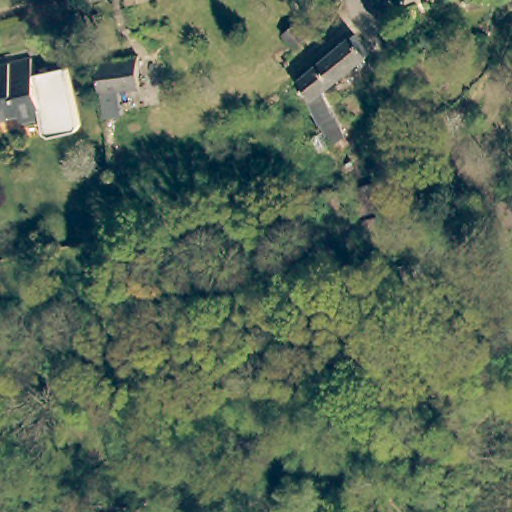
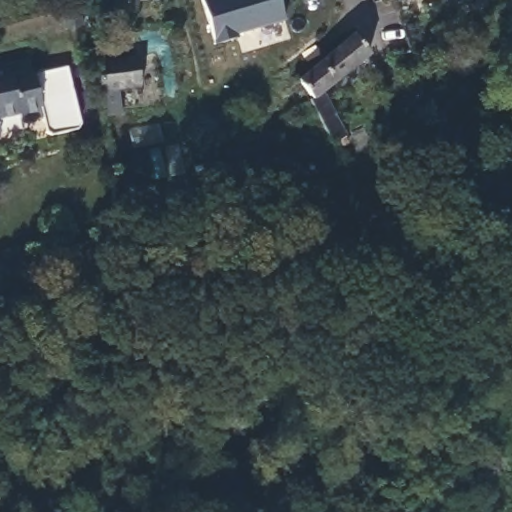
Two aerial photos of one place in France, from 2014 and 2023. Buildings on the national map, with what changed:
new [(45,1),(45,0),(51,0),(45,1)]
new [(236,34),(237,39),(213,45),(202,0),(280,0),(285,19),(236,34)]
unchanged [(363,55),(318,91),(346,134),(331,145),(305,101),(307,99),(296,81),(350,36),(363,55)]
unchanged [(136,56),(139,93),(98,100),(95,62),(136,56)]
unchanged [(76,131),(53,137),(45,132),(45,125),(44,120),(20,125),(19,117),(0,122),(0,68),(30,61),(33,76),(67,69),(78,116),(80,124),(76,131)]
unchanged [(353,161),(355,167),(347,171),(344,166),(353,161)]
unchanged [(377,185),(385,210),(365,217),(356,191),(377,185)]

